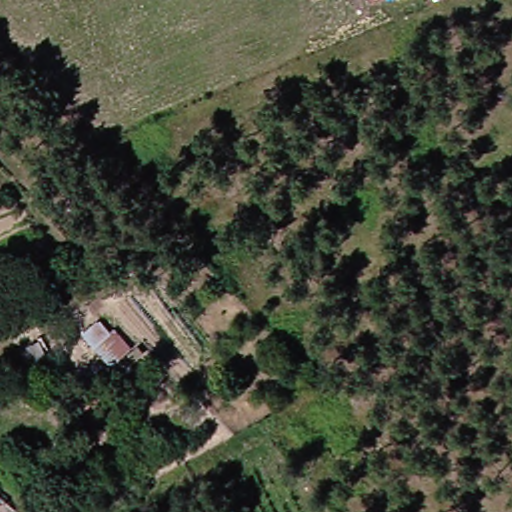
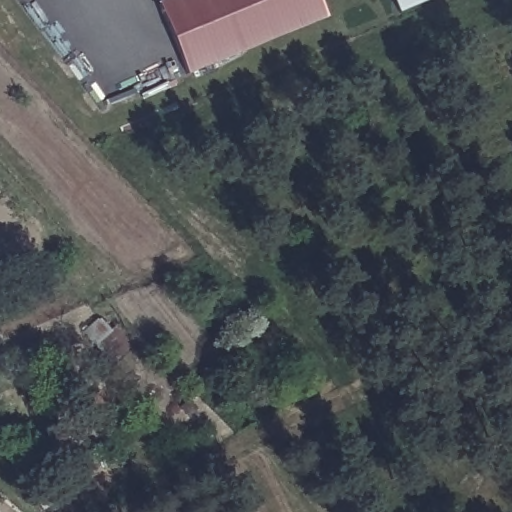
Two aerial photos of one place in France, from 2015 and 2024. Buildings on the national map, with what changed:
new [(166,0),(325,0),(330,14),(191,70),(164,1),(166,0)]
new [(432,0),(401,13),(395,0),(432,0)]

